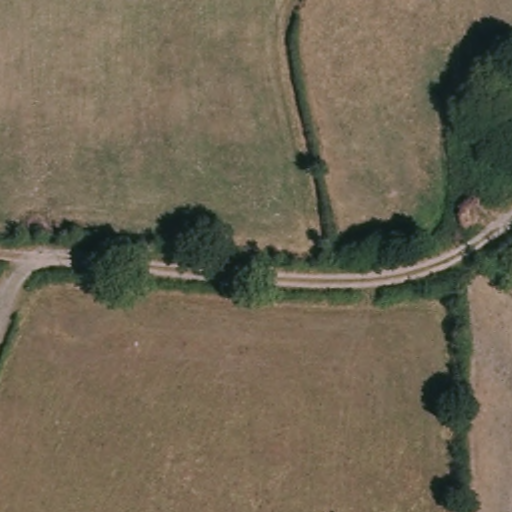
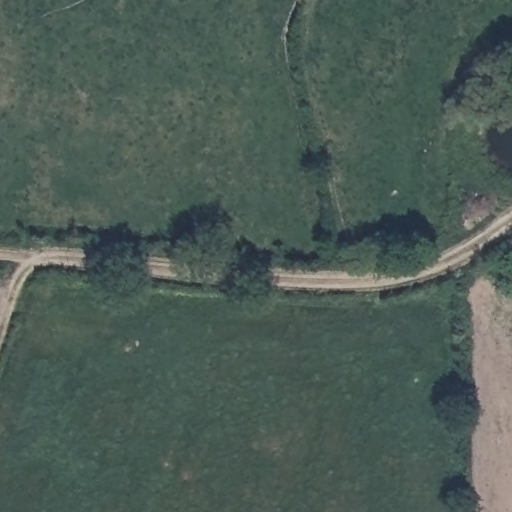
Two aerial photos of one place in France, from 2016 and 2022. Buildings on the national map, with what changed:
[]

